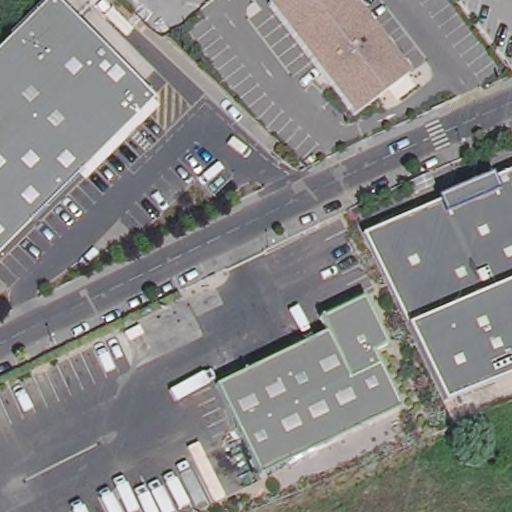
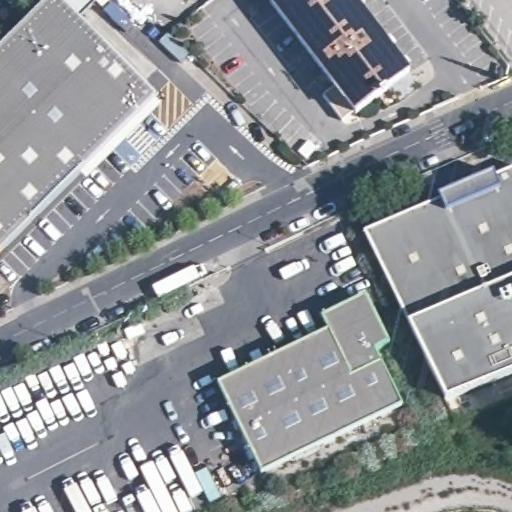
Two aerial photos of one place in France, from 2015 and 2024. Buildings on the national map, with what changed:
unchanged [(160,91),(0,252),(0,49),(50,0),(70,0),(160,91)]
unchanged [(271,1),(273,0),(360,0),(414,72),(358,113),(271,1)]
unchanged [(365,230),(512,167),(512,375),(447,401),(365,230)]
unchanged [(410,396),(271,466),(226,376),(334,322),(328,308),(372,286),(396,334),(381,341),(410,396)]

